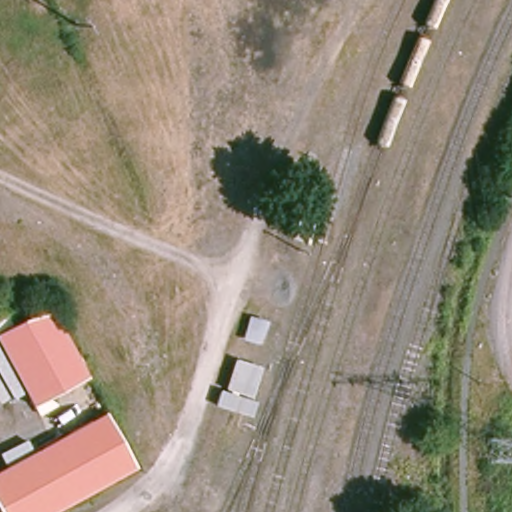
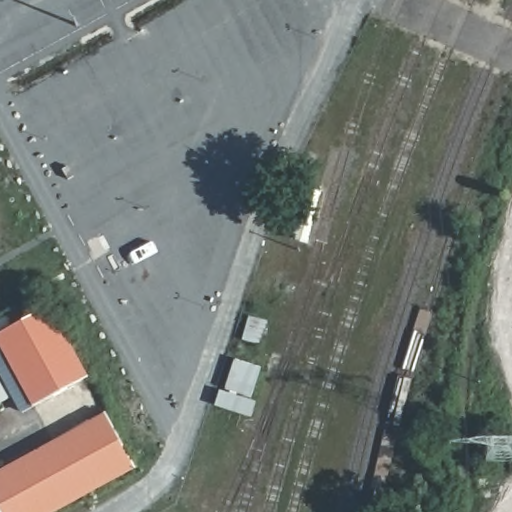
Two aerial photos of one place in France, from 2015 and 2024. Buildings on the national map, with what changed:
unchanged [(307,192),(320,196),(304,246),(291,242),(307,192)]
unchanged [(256,303),(264,305),(260,320),(269,323),(262,346),(243,339),(256,303)]
unchanged [(33,408),(0,348),(0,337),(51,307),(90,377),(33,408)]
unchanged [(239,364),(261,371),(253,402),(230,394),(239,364)]
unchanged [(6,399),(0,402),(0,388),(6,399)]
unchanged [(224,399),(255,409),(251,422),(220,413),(224,399)]
unchanged [(105,414),(135,471),(59,512),(0,512),(0,471),(105,414)]

